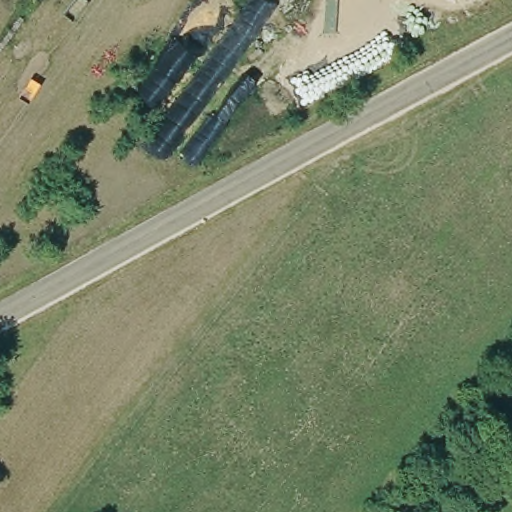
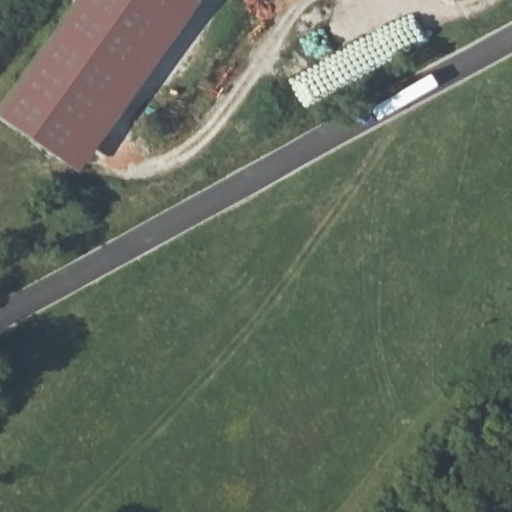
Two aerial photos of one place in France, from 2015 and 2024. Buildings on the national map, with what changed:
new [(79,175),(0,123),(0,115),(84,0),(195,0),(200,4),(79,175)]

